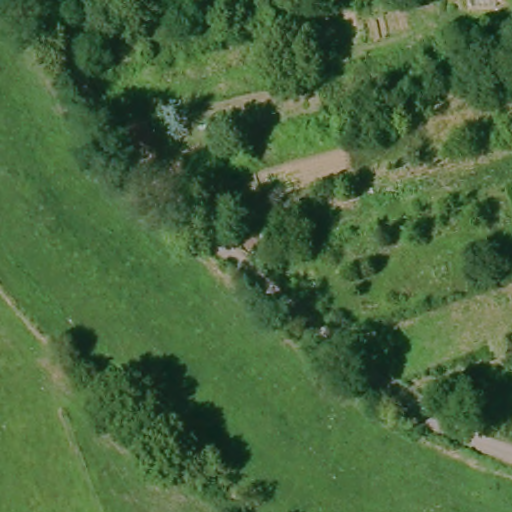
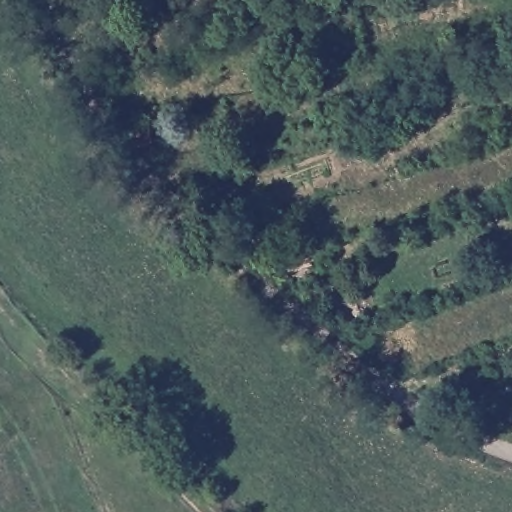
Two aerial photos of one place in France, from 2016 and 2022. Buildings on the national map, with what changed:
[]

